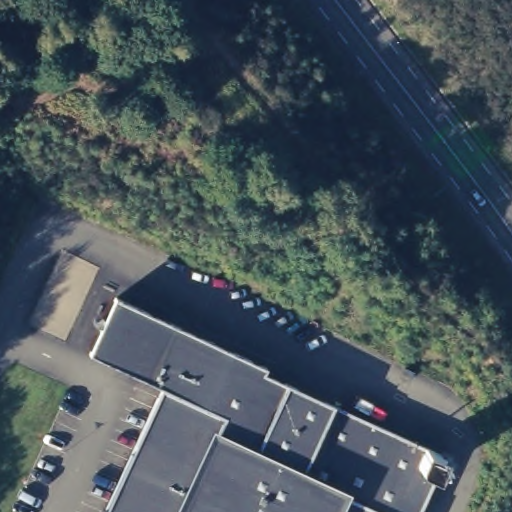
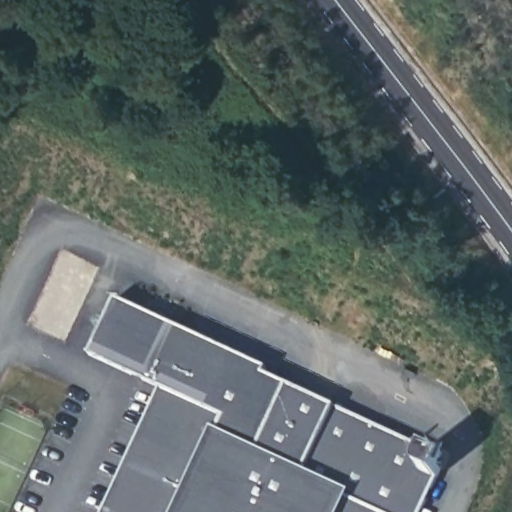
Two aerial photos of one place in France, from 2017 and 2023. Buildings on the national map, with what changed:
unchanged [(157,386),(90,355),(116,298),(267,368),(265,374),(414,441),(448,457),(445,469),(452,469),(443,489),(430,484),(420,512),(105,512),(162,389),(157,386)]

